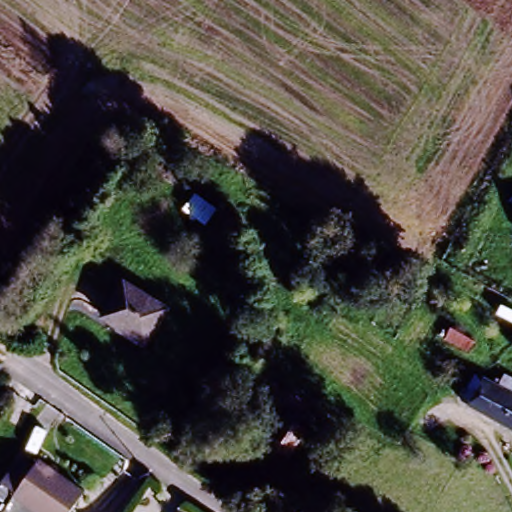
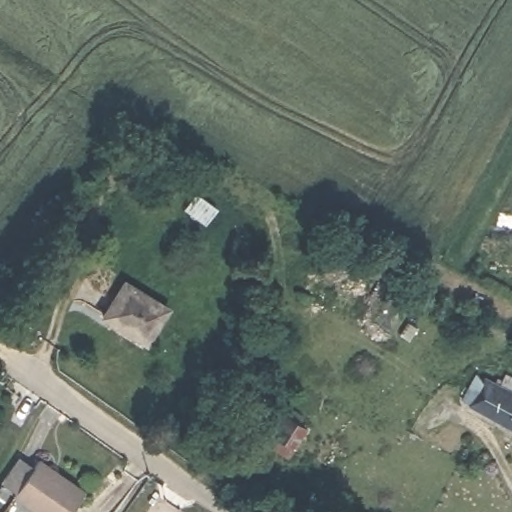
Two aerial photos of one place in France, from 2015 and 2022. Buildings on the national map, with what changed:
unchanged [(120,286),(166,312),(146,344),(123,329),(120,333),(101,322),(120,286)]
unchanged [(473,377),(494,389),(501,377),(512,383),(512,399),(512,432),(459,403),(473,377)]
unchanged [(266,429),(227,487),(211,476),(252,410),(262,416),(258,421),(266,429)]
unchanged [(16,459),(32,469),(37,461),(82,493),(68,512),(34,512),(13,497),(16,493),(10,489),(2,500),(0,498),(0,486),(2,484),(0,483),(16,459)]

